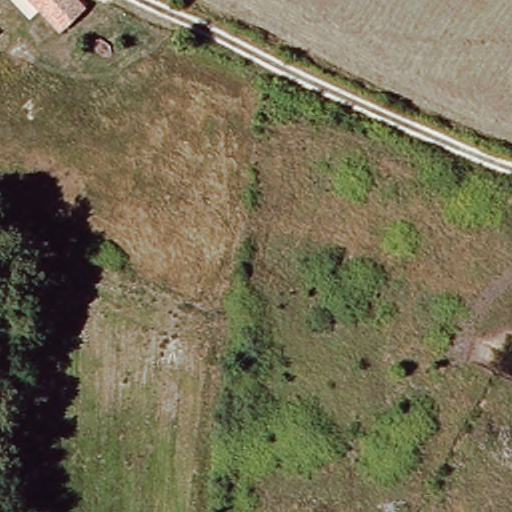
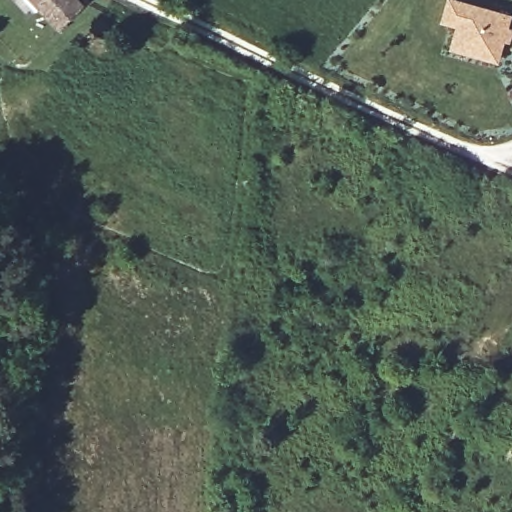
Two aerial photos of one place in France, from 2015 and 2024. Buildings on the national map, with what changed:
unchanged [(84,5),(58,29),(31,0),(80,0),(84,5)]
new [(445,0),(458,0),(510,15),(497,64),(446,50),(453,27),(438,24),(445,0)]

